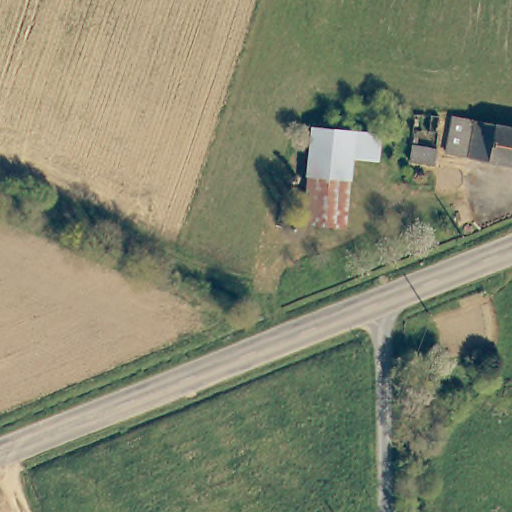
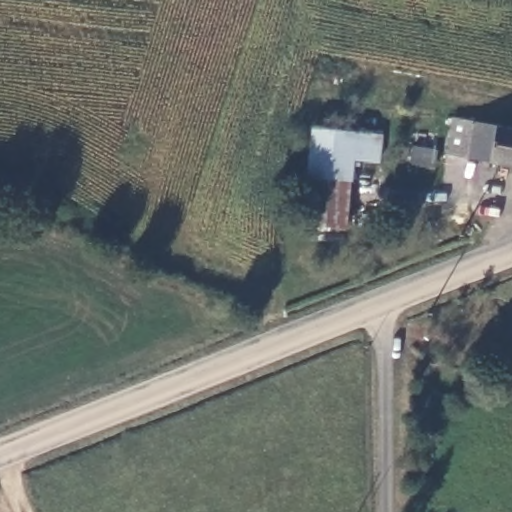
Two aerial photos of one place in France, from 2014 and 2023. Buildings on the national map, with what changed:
unchanged [(436,132),(412,131),(410,115),(437,117),(436,132)]
unchanged [(454,119),(512,130),(512,168),(448,157),(454,119)]
unchanged [(380,137),(378,164),(352,161),(343,227),(303,224),(315,130),(380,137)]

